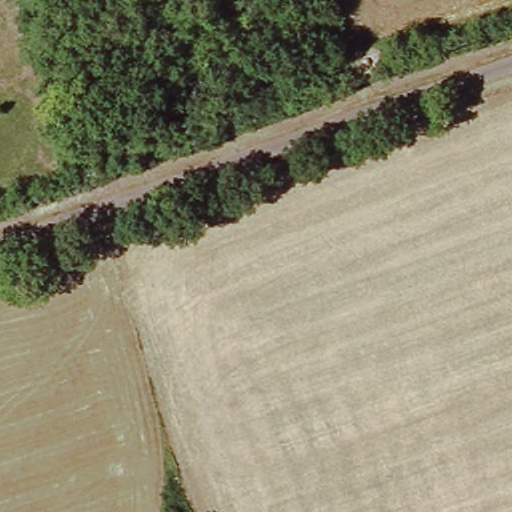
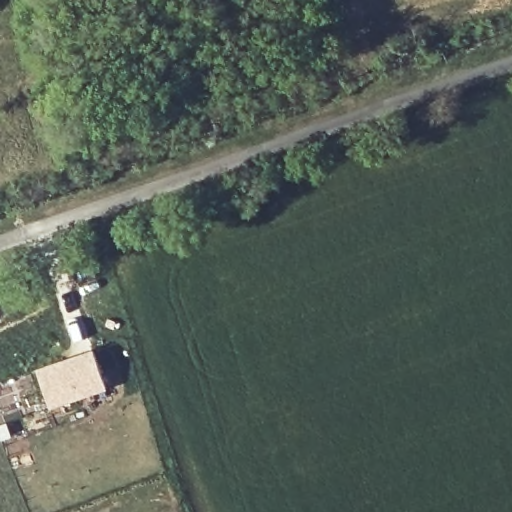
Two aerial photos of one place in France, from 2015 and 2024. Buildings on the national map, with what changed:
new [(91,346),(105,389),(47,409),(33,368),(91,346)]

